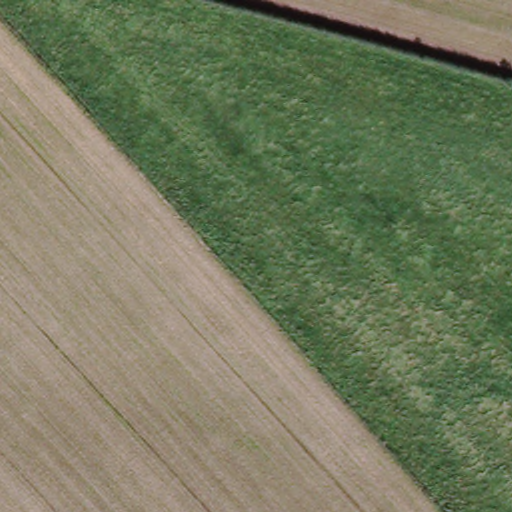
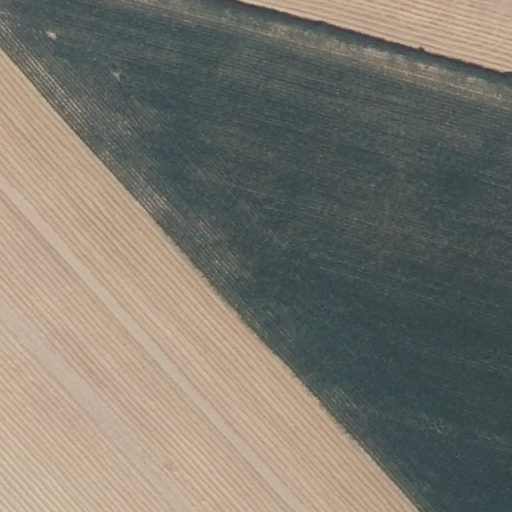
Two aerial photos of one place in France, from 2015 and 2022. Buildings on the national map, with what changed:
[]

